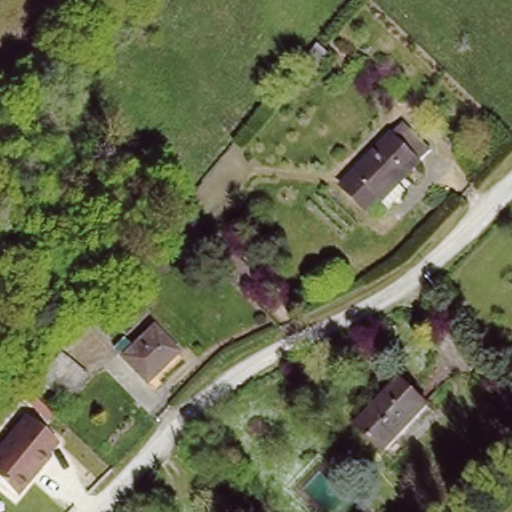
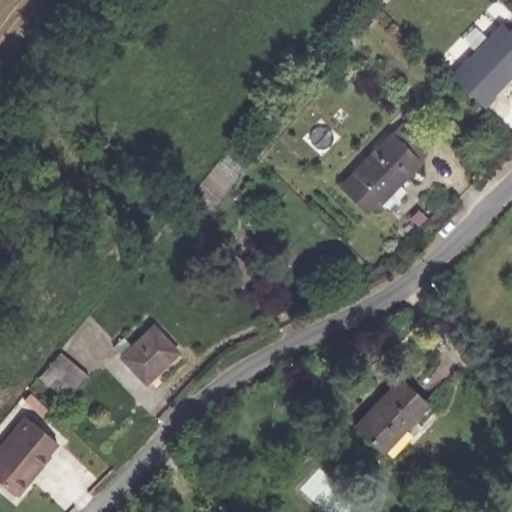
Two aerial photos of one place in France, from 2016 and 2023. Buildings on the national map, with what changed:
new [(512,35),(512,84),(488,110),(455,81),(504,28),(512,35)]
unchanged [(311,48),(322,58),(304,81),(291,70),(311,48)]
unchanged [(398,203),(380,222),(368,211),(361,218),(330,191),(393,128),(423,154),(386,193),(398,203)]
unchanged [(223,269),(234,257),(258,276),(244,290),(223,269)]
unchanged [(181,352),(151,381),(114,347),(128,334),(139,346),(156,329),(181,352)]
unchanged [(88,378),(66,403),(38,379),(59,354),(88,378)]
unchanged [(358,428),(404,381),(432,409),(387,456),(358,428)]
unchanged [(58,445),(18,496),(0,481),(0,446),(26,414),(58,445)]

